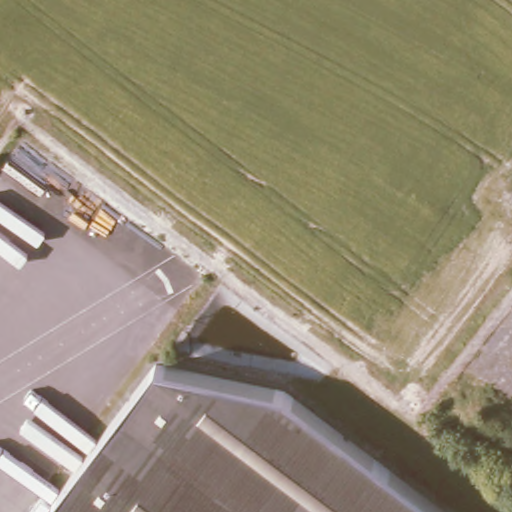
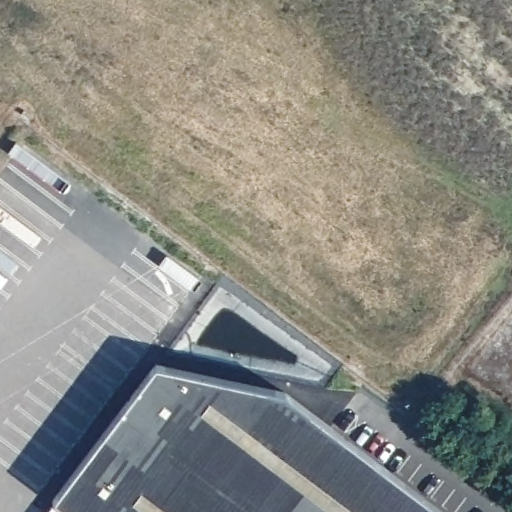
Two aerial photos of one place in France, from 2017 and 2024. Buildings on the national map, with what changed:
unchanged [(285,391),(444,512),(68,512),(52,500),(155,363),(285,391)]

